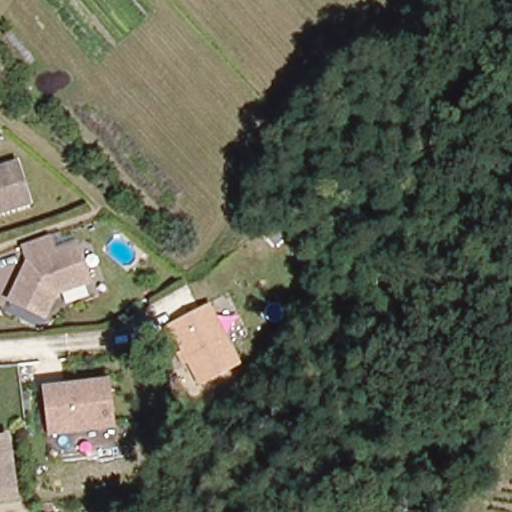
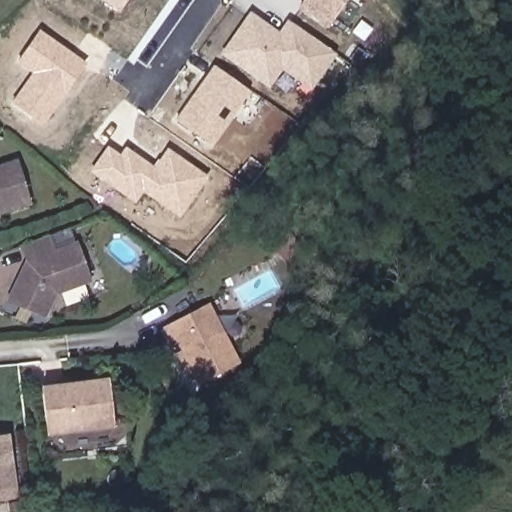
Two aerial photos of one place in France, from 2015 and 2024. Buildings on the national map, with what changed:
new [(102,0),(127,0),(119,12),(102,0)]
new [(298,6),(302,0),(347,0),(328,27),(298,6)]
new [(310,90),(283,70),(269,90),(219,54),(249,11),(279,30),(287,19),(337,53),(310,90)]
new [(43,125),(10,103),(31,74),(14,62),(39,30),(86,64),(43,125)]
new [(174,119),(213,65),(249,90),(210,145),(174,119)]
new [(107,145),(119,154),(125,146),(154,166),(167,147),(208,176),(180,217),(144,191),(136,202),(89,171),(107,145)]
unchanged [(29,201),(0,211),(0,167),(14,162),(29,201)]
unchanged [(30,260),(25,244),(51,235),(56,251),(79,244),(90,278),(56,291),(46,313),(12,297),(19,281),(26,269),(30,260)]
unchanged [(180,352),(184,350),(177,337),(172,340),(164,326),(209,302),(240,362),(201,383),(189,360),(185,361),(180,352)]
unchanged [(46,435),(43,386),(107,379),(113,427),(46,435)]
unchanged [(18,491),(0,494),(0,434),(9,433),(18,491)]

